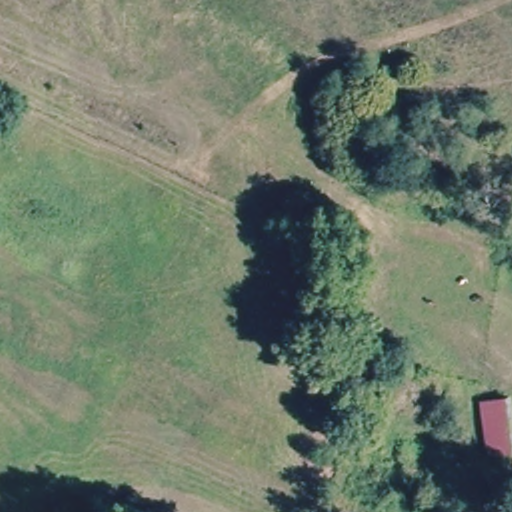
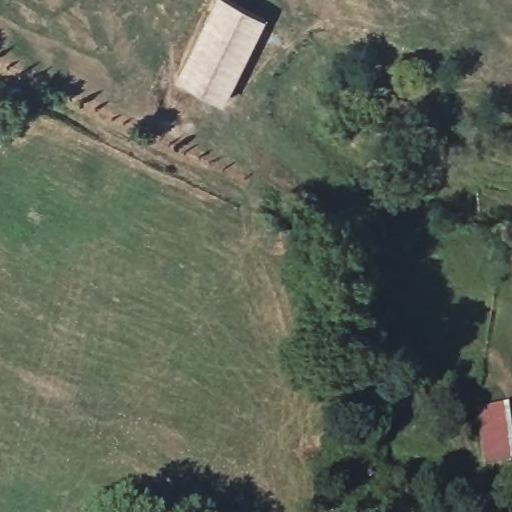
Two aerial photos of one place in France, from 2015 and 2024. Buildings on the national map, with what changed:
new [(222,104),(176,81),(216,0),(228,0),(265,20),(222,104)]
unchanged [(501,402),(509,455),(482,458),(474,406),(501,402)]

